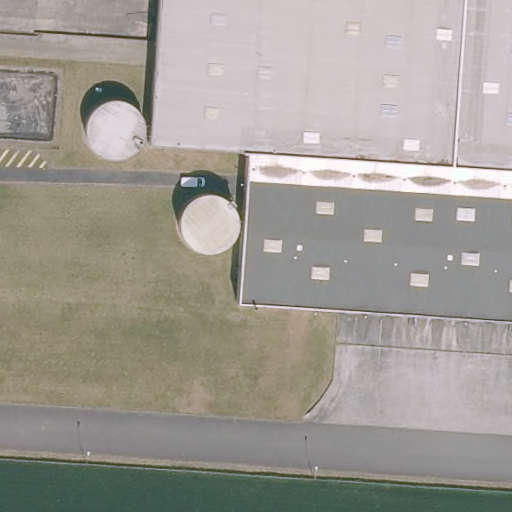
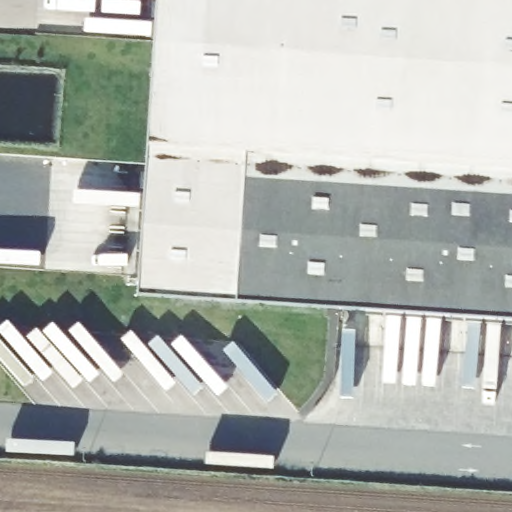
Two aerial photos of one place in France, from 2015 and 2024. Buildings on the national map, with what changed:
unchanged [(245,144),(146,136),(156,0),(512,0),(512,317),(233,295),(245,144)]
new [(136,291),(146,136),(245,144),(233,295),(136,291)]

